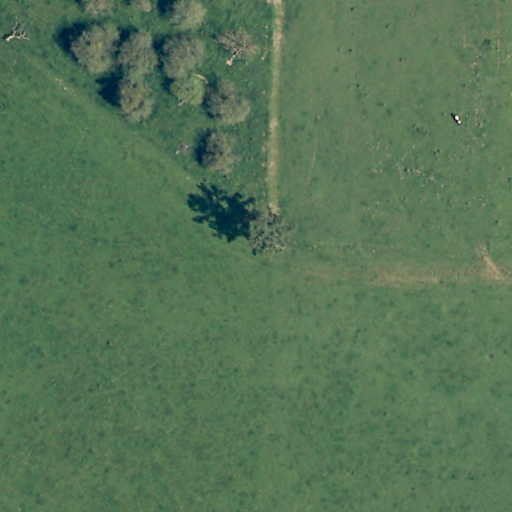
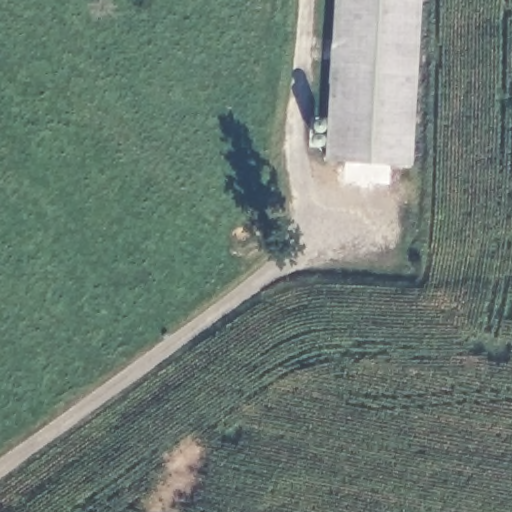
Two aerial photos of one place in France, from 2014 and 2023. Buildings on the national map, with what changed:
new [(413,165),(325,160),(334,0),(421,0),(413,165)]

